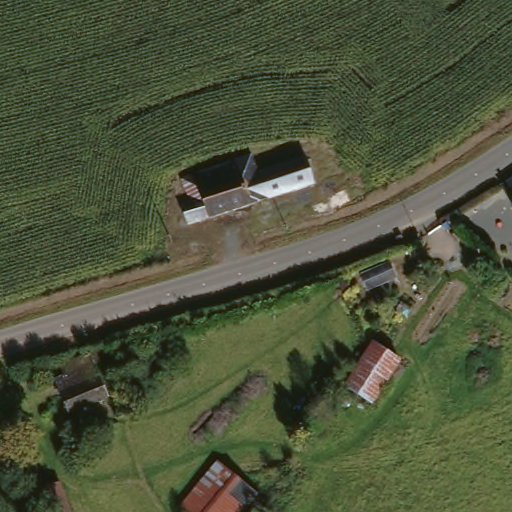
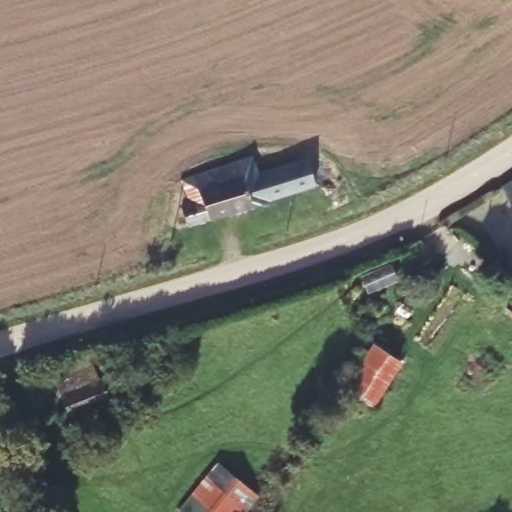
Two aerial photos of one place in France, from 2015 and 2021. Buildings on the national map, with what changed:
unchanged [(167,211),(176,207),(170,186),(173,185),(240,162),(246,179),(292,164),(303,192),(175,235),(167,211)]
unchanged [(493,185),(512,173),(512,216),(493,185)]
unchanged [(356,280),(385,267),(390,283),(361,296),(356,280)]
unchanged [(365,347),(402,371),(374,413),(337,389),(365,347)]
unchanged [(55,400),(49,387),(59,382),(56,372),(90,357),(94,363),(85,368),(101,405),(64,420),(55,400)]
unchanged [(10,467),(26,462),(37,491),(52,486),(62,512),(27,512),(21,496),(10,467)]
unchanged [(212,468),(250,501),(241,512),(173,512),(212,468)]

